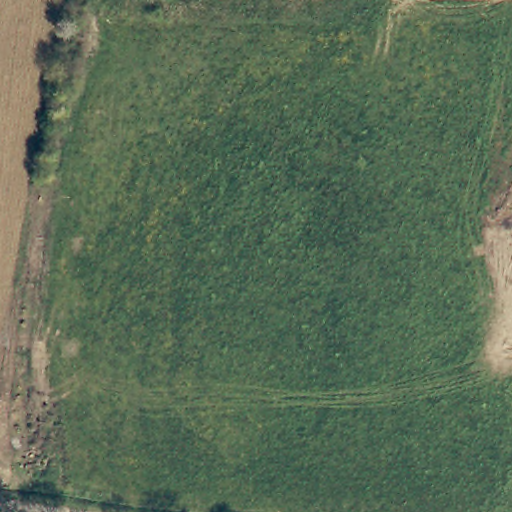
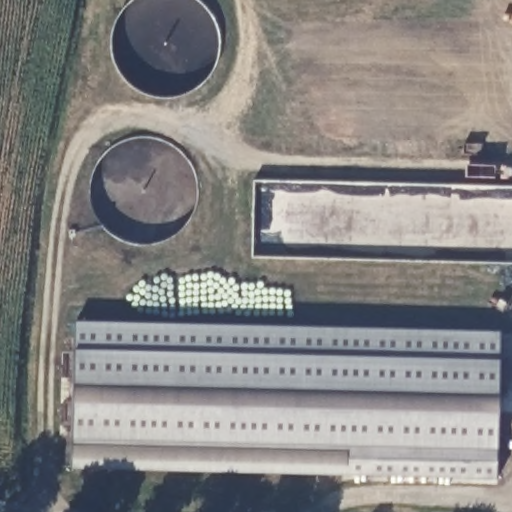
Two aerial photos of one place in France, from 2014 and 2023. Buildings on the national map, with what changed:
new [(497,478),(72,469),(75,321),(500,331),(497,478)]

